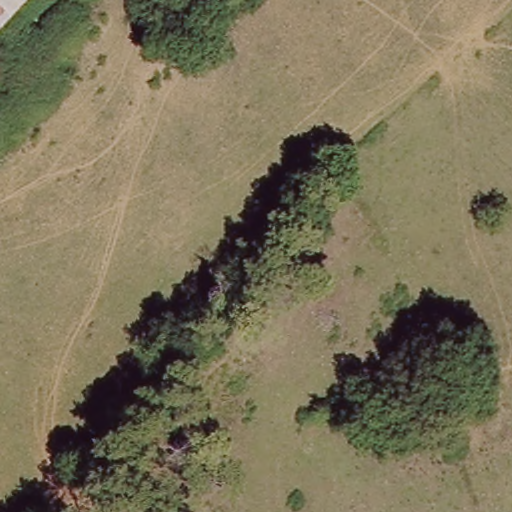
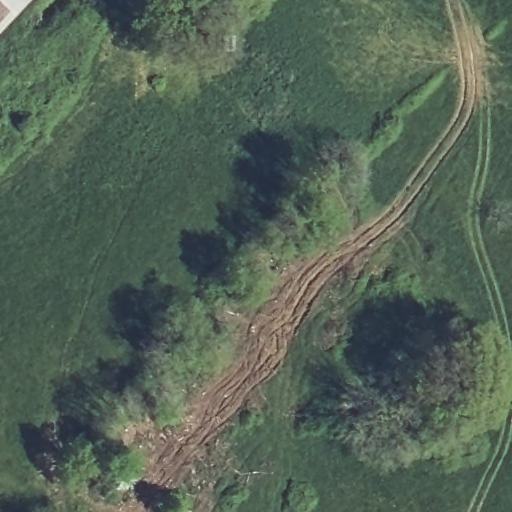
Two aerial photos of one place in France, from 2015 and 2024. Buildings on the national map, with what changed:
unchanged [(9,20),(0,11),(0,0),(29,0),(9,20)]
unchanged [(0,30),(0,11),(9,20),(0,30)]

